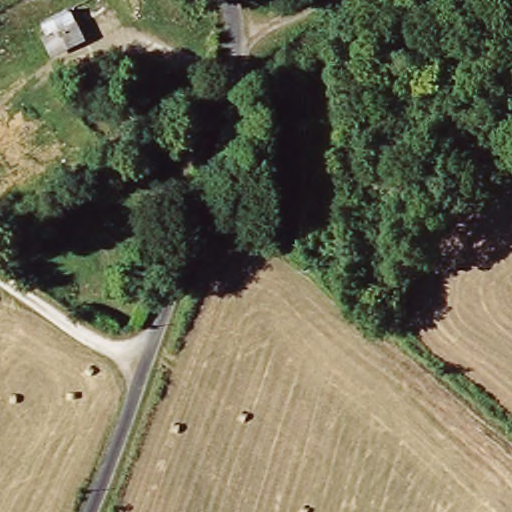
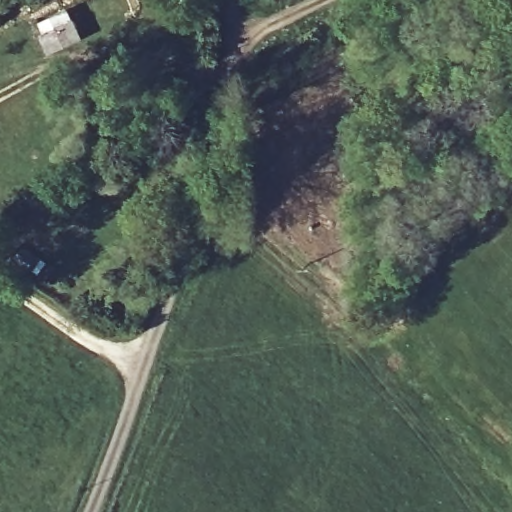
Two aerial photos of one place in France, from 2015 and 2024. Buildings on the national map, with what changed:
unchanged [(52,56),(38,28),(66,13),(81,42),(52,56)]
unchanged [(82,74),(74,87),(66,82),(74,69),(82,74)]

